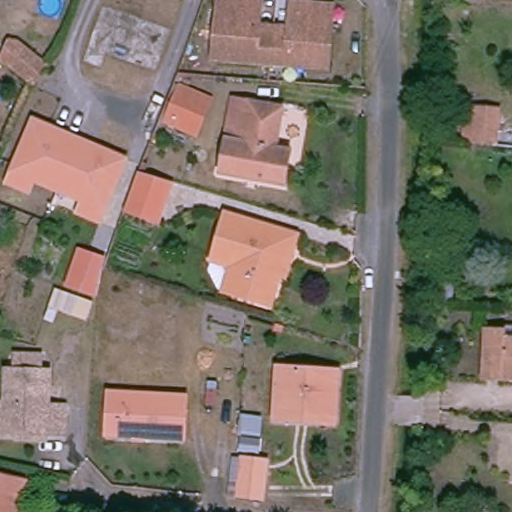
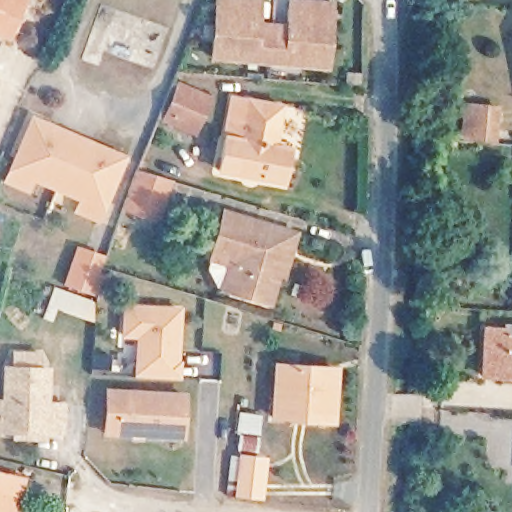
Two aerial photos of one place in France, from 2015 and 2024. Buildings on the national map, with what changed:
new [(21,0),(19,6),(24,9),(12,43),(0,39),(0,0),(21,0)]
unchanged [(290,8),(290,0),(305,0),(331,4),(330,21),(325,68),(213,54),(216,6),(217,0),(259,0),(259,3),(258,29),(287,31),(290,8)]
demolished [(48,65),(31,91),(0,64),(0,52),(7,38),(18,39),(48,65)]
unchanged [(207,109),(196,137),(164,124),(175,95),(207,109)]
unchanged [(279,146),(292,149),(287,183),(224,171),(231,137),(239,96),(253,99),(286,105),(279,146)]
unchanged [(473,105),(496,106),(494,142),(472,141),(473,105)]
unchanged [(80,214),(84,203),(34,183),(29,195),(9,187),(13,174),(34,124),(127,160),(106,211),(101,224),(80,214)]
unchanged [(173,181),(159,222),(123,211),(141,170),(173,181)]
unchanged [(295,229),(291,247),(285,245),(278,269),(269,299),(214,284),(207,267),(221,208),(295,229)]
unchanged [(107,258),(93,293),(65,283),(78,246),(107,258)]
unchanged [(95,302),(86,323),(58,312),(53,324),(44,320),(56,288),(95,302)]
new [(120,303),(182,305),(181,380),(132,377),(135,339),(120,338),(120,303)]
unchanged [(488,327),(510,328),(510,324),(512,324),(512,377),(487,376),(488,327)]
unchanged [(54,407),(72,408),(71,439),(0,436),(0,407),(12,407),(12,372),(21,372),(21,356),(47,357),(46,373),(55,373),(54,407)]
unchanged [(337,369),(336,421),(275,419),(276,367),(337,369)]
unchanged [(185,401),(183,442),(169,441),(115,439),(106,438),(108,397),(117,397),(173,400),(185,401)]
unchanged [(241,454),(245,454),(246,414),(262,413),(262,455),(267,456),(266,469),(265,497),(238,493),(240,462),(241,454)]
unchanged [(23,474),(21,494),(19,512),(0,512),(0,472),(23,474)]

